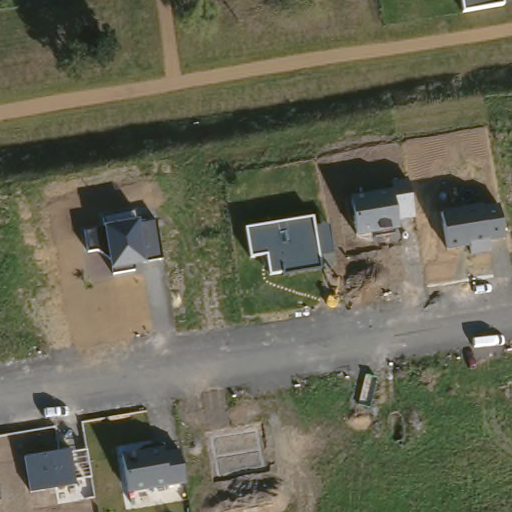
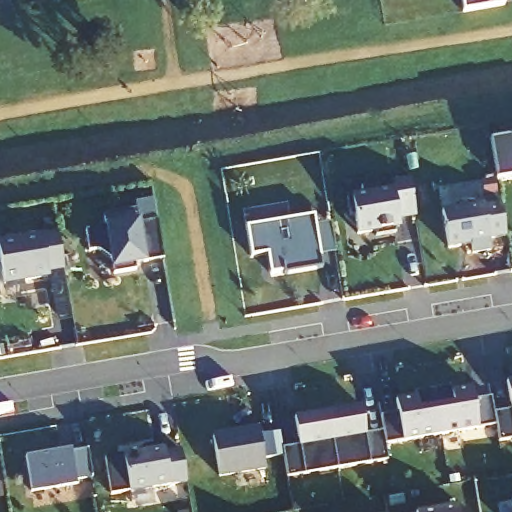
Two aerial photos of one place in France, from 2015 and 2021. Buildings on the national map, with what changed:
unchanged [(461,9),(460,0),(501,0),(501,3),(461,9)]
new [(496,180),(490,140),(512,137),(512,178),(496,180)]
unchanged [(351,195),(361,193),(361,187),(378,185),(378,190),(392,188),(391,182),(409,179),(415,219),(398,221),(400,228),(395,229),(395,233),(376,235),(376,232),(357,234),(351,195)]
unchanged [(441,211),(483,203),(483,207),(500,204),(504,239),(488,240),(490,251),(470,254),(470,244),(447,248),(441,211)]
unchanged [(104,215),(135,211),(135,220),(139,220),(139,223),(155,221),(161,258),(145,260),(146,264),(135,266),(136,269),(112,272),(111,268),(110,258),(97,248),(89,249),(87,230),(104,226),(104,215)]
unchanged [(321,266),(268,273),(266,255),(250,258),(245,227),(313,216),(315,226),(328,224),(333,253),(321,256),(321,266)]
new [(56,232),(63,270),(72,320),(57,322),(48,278),(5,285),(0,262),(0,241),(44,234),(42,221),(54,218),(56,232)]
new [(499,441),(496,424),(495,414),(510,411),(505,379),(512,379),(512,439),(499,441)]
new [(478,427),(402,440),(385,443),(383,432),(380,415),(396,411),(395,399),(415,395),(415,392),(451,385),(451,389),(471,385),(473,399),(491,396),(495,414),(496,424),(478,427)]
new [(385,443),(387,458),(287,476),(283,449),(298,446),(294,415),(361,405),(365,434),(383,432),(385,443)]
unchanged [(257,427),(265,466),(219,475),(212,436),(257,427)]
unchanged [(165,452),(180,452),(185,482),(169,485),(129,493),(122,454),(164,447),(165,452)]
unchanged [(71,452),(89,450),(93,478),(75,481),(76,485),(31,491),(26,457),(71,449),(71,452)]
new [(510,500),(512,500),(512,509),(510,500)]
new [(456,504),(458,512),(414,512),(456,504)]

